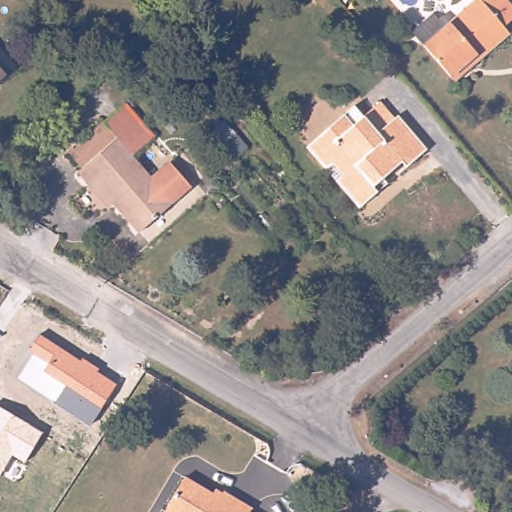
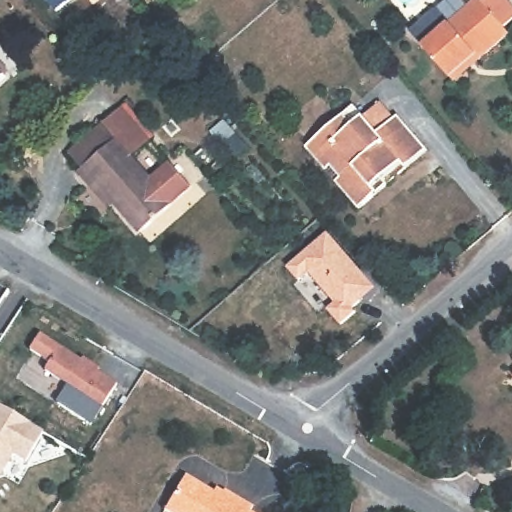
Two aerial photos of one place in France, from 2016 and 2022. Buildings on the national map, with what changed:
unchanged [(424,40),(410,24),(432,6),(436,11),(441,8),(451,19),(473,0),(508,0),(512,5),(512,17),(505,23),(511,30),(480,57),(455,77),(451,74),(424,40)]
unchanged [(13,69),(9,72),(0,80),(0,54),(13,69)]
unchanged [(92,183),(80,169),(84,165),(71,150),(92,132),(124,104),(151,135),(134,150),(156,175),(175,159),(196,182),(141,231),(115,201),(110,204),(92,183)]
unchanged [(358,210),(347,197),(335,184),(325,172),(311,154),(305,147),(324,131),(356,105),(380,133),(398,117),(428,152),(409,168),(404,161),(385,177),(390,184),(358,210)]
new [(327,231),(361,272),(368,265),(384,285),(372,295),(369,291),(350,307),(353,310),(339,323),(326,308),(333,301),(307,269),(297,278),(286,264),(327,231)]
unchanged [(90,425),(56,403),(66,386),(44,372),(48,363),(29,351),(39,334),(80,360),(82,357),(100,369),(98,372),(117,383),(90,425)]
unchanged [(24,463),(12,456),(0,476),(0,406),(43,432),(24,463)]
unchanged [(219,497),(223,491),(251,508),(249,512),(250,512),(168,512),(165,511),(186,478),(219,497)]

